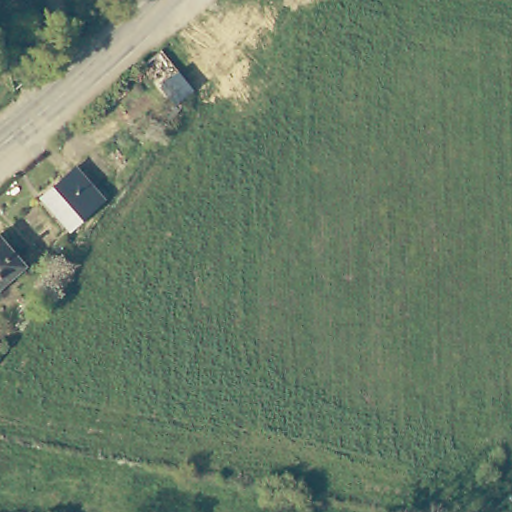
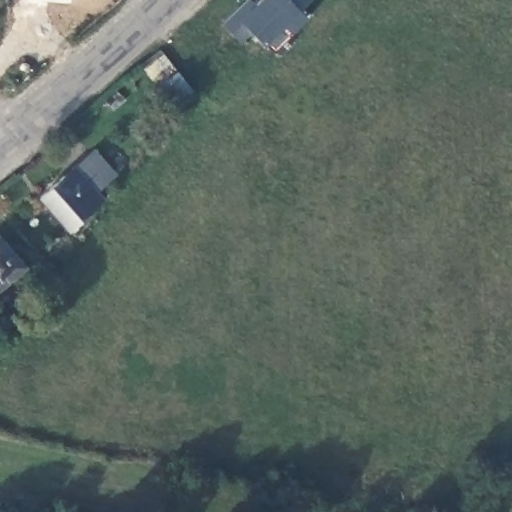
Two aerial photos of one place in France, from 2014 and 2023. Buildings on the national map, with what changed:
new [(307,19),(291,34),(285,25),(264,46),(251,33),(240,42),(223,23),(246,0),(251,0),(255,4),(259,0),(311,0),(300,9),(307,19)]
new [(177,104),(161,84),(178,70),(193,90),(177,104)]
unchanged [(105,201),(71,233),(45,202),(47,200),(80,173),(105,201)]
unchanged [(27,266),(0,289),(0,236),(1,235),(27,266)]

